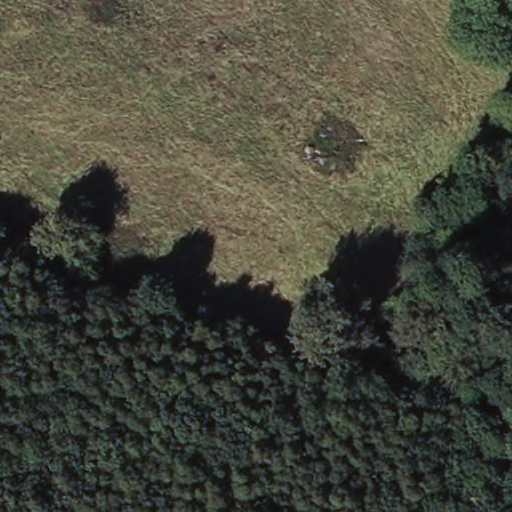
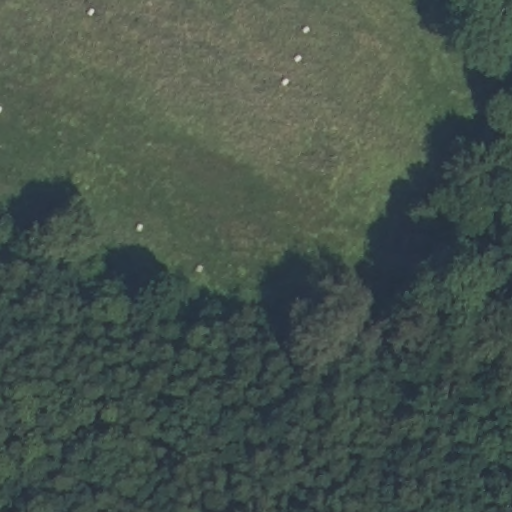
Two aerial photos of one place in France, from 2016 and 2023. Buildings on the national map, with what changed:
unchanged [(324,164),(307,154),(318,132),(336,142),(324,164)]

